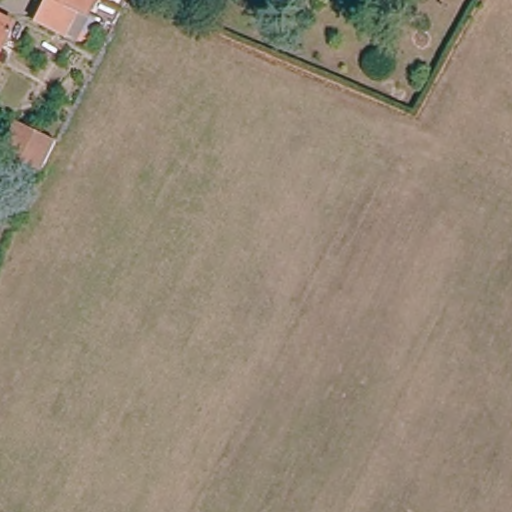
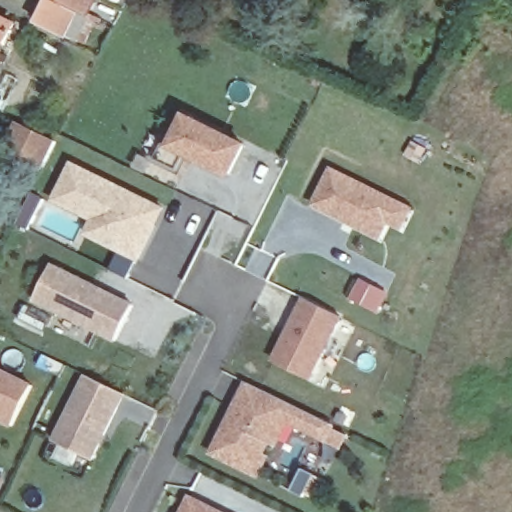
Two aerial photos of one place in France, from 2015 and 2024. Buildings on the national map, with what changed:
unchanged [(66,35),(37,21),(47,0),(95,0),(88,16),(89,17),(77,41),(66,35)]
unchanged [(12,24),(0,47),(0,17),(12,24)]
new [(216,131),(206,150),(199,147),(194,157),(187,153),(179,170),(156,158),(168,134),(175,137),(186,116),(216,131)]
unchanged [(6,149),(19,123),(55,141),(43,167),(6,149)]
new [(244,145),(230,174),(214,166),(219,156),(214,153),(223,134),(244,145)]
new [(161,208),(153,225),(127,278),(110,269),(126,235),(52,199),(70,163),(157,205),(161,208)]
new [(310,208),(330,167),(414,208),(402,233),(388,226),(381,240),(310,208)]
new [(126,235),(119,249),(85,232),(92,218),(126,235)]
new [(131,304),(115,339),(33,299),(50,264),(131,304)]
new [(340,316),(309,377),(273,359),(303,298),(340,316)]
new [(32,385),(12,425),(0,419),(0,370),(32,385)]
new [(86,374),(124,393),(92,459),(53,440),(86,374)]
new [(275,442),(268,439),(260,455),(265,457),(257,473),(213,451),(235,407),(248,382),(270,393),(307,411),(324,419),(332,423),(325,438),(317,434),(300,425),(287,419),(275,442)]
new [(302,467),(314,473),(303,496),(291,490),(302,467)]
new [(218,512),(183,512),(190,498),(218,512)]

